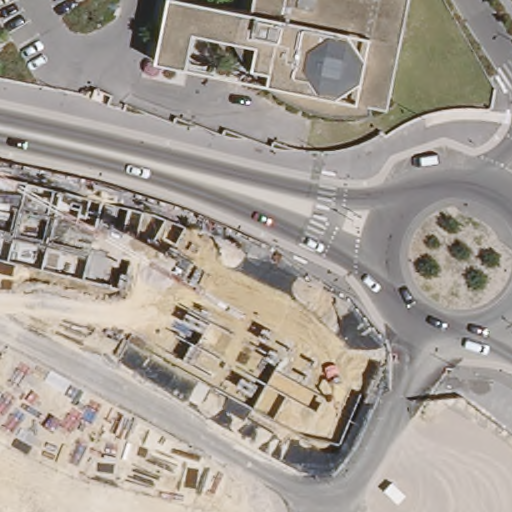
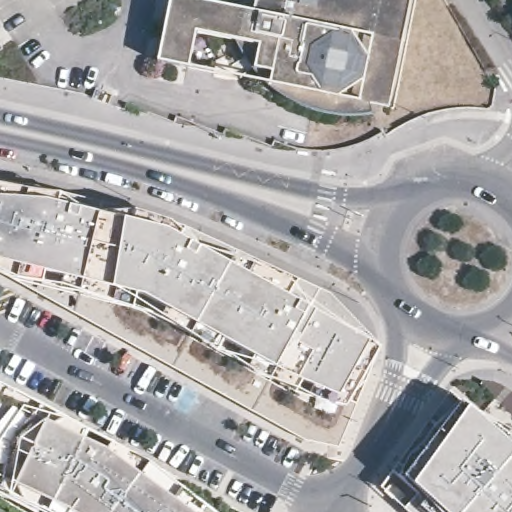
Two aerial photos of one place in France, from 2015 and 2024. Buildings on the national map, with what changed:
unchanged [(395,103),(392,104),(332,92),(275,82),(272,77),(266,70),(262,64),(257,53),(254,42),(202,31),(194,67),(165,61),(176,0),(203,0),(260,10),(262,0),(414,0),(395,103)]
new [(16,279),(0,270),(0,185),(138,210),(330,294),(382,346),(338,447),(302,438),(16,279)]
new [(210,512),(33,512),(0,490),(0,384),(149,462),(210,512)]
new [(451,391),(492,427),(502,413),(512,421),(512,512),(408,512),(382,488),(451,391)]
demolished [(452,442),(462,426),(502,453),(512,461),(512,490),(483,465),(485,463),(452,442)]

